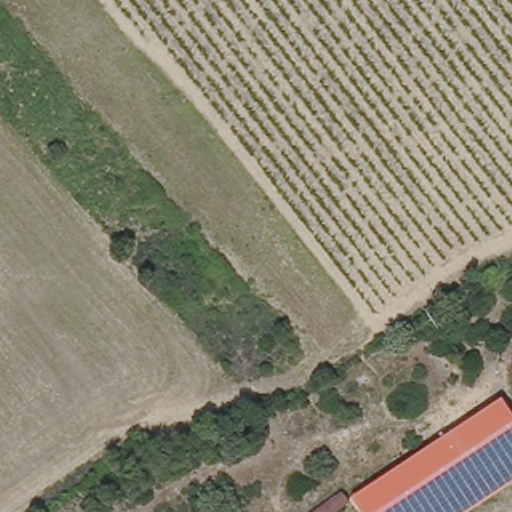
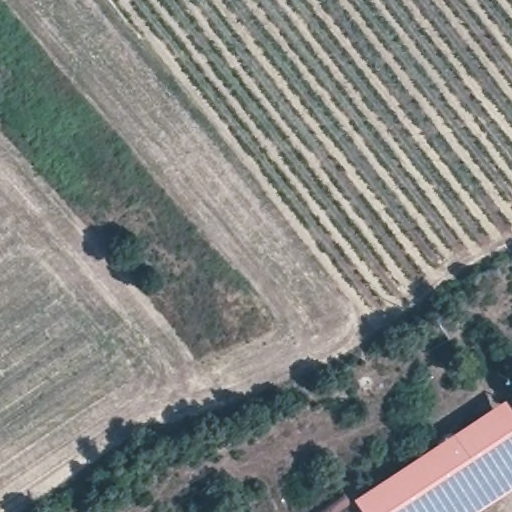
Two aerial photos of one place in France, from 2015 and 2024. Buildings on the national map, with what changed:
unchanged [(351,496),(501,396),(512,414),(512,482),(466,512),(361,512),(351,496)]

